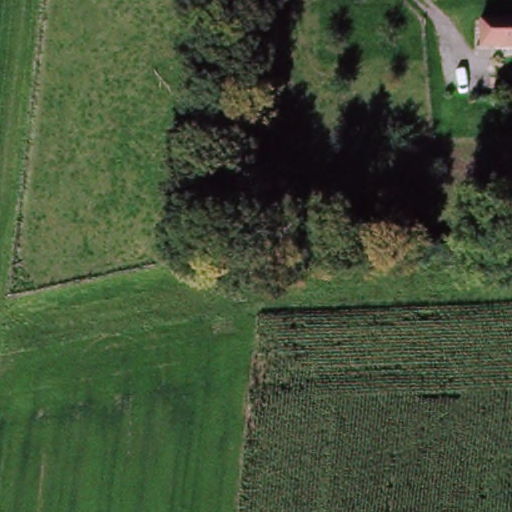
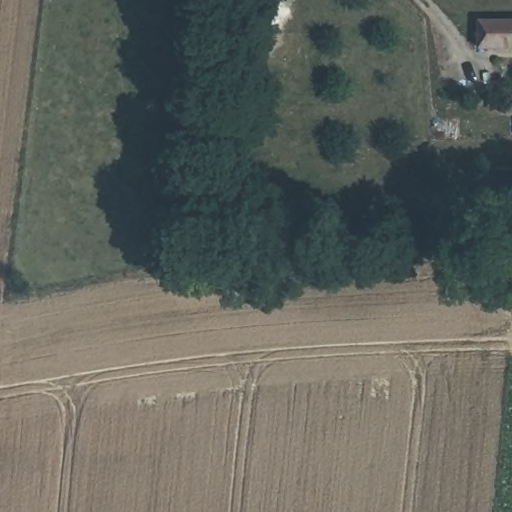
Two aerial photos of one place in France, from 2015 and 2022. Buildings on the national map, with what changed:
unchanged [(496,52),(478,52),(479,19),(512,19),(512,52),(496,52)]

